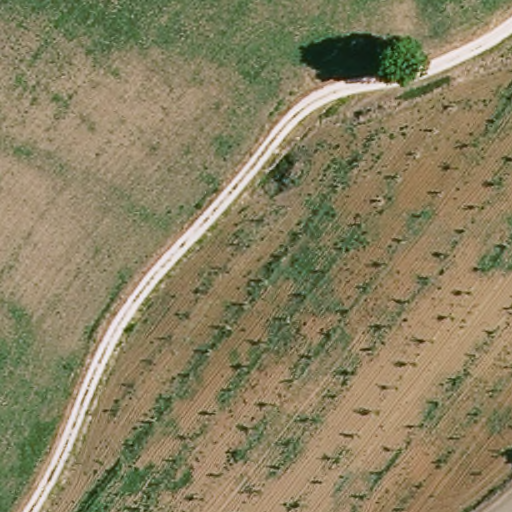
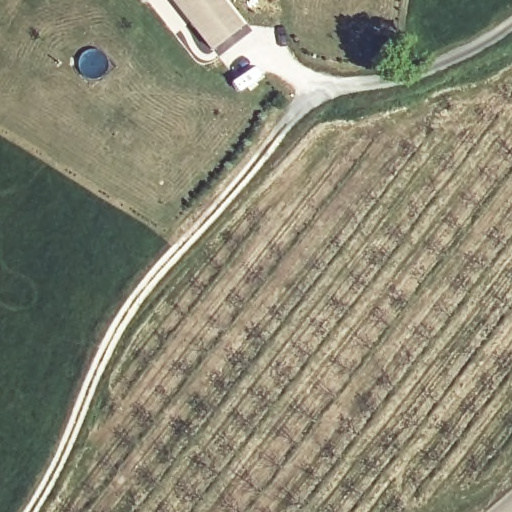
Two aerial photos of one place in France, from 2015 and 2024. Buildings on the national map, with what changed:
new [(245,25),(213,49),(175,0),(225,0),(245,25)]

